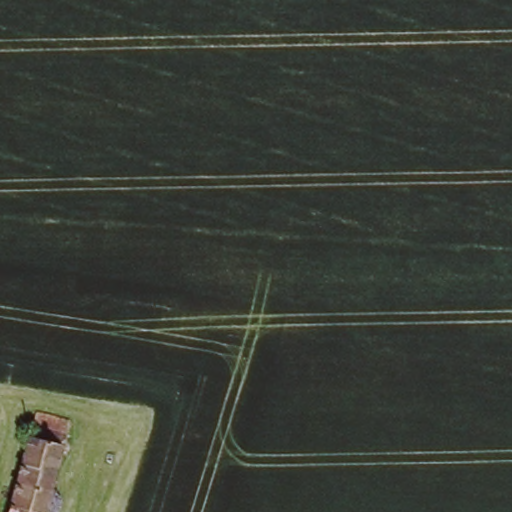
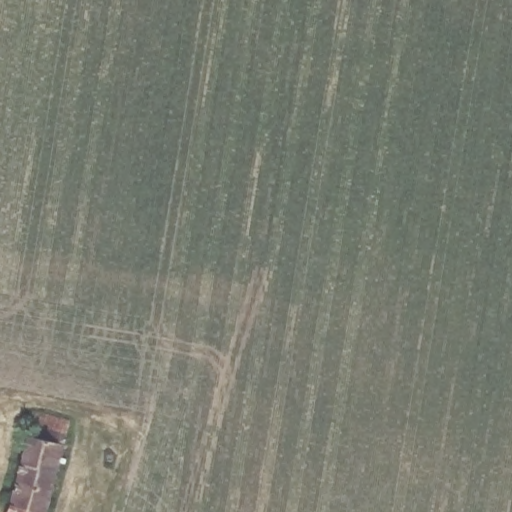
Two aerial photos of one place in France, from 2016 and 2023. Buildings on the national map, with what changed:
unchanged [(49,512),(11,512),(37,420),(70,430),(49,512)]

